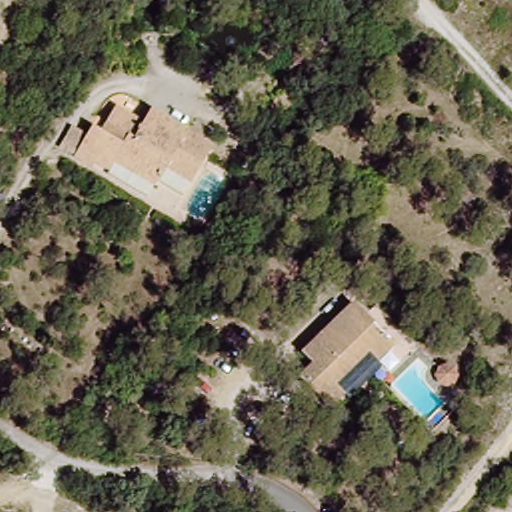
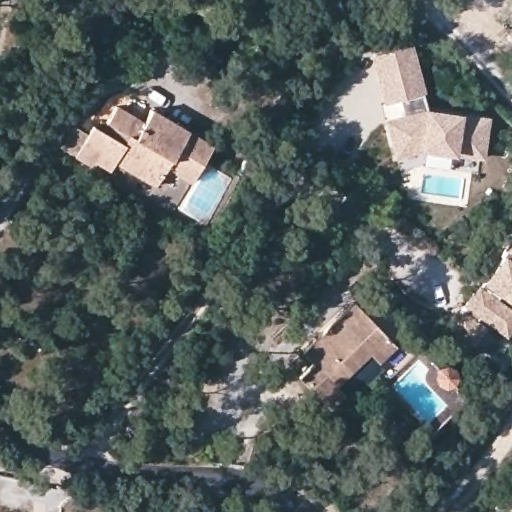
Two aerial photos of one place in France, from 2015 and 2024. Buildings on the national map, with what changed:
new [(425,92),(422,93),(426,107),(488,116),(483,159),(450,154),(449,169),(423,166),(424,151),(393,159),(384,120),(402,115),(399,100),(382,103),(371,55),(412,45),(425,92)]
unchanged [(211,149),(193,182),(166,171),(157,187),(117,169),(111,179),(96,172),(92,178),(75,171),(118,103),(211,149)]
new [(391,192),(378,206),(367,197),(380,183),(391,192)]
new [(512,245),(512,328),(506,337),(485,323),(470,344),(452,331),(512,245)]
unchanged [(397,343),(380,364),(370,353),(337,384),(343,388),(321,400),(298,371),(308,363),(293,352),(352,298),(397,343)]

